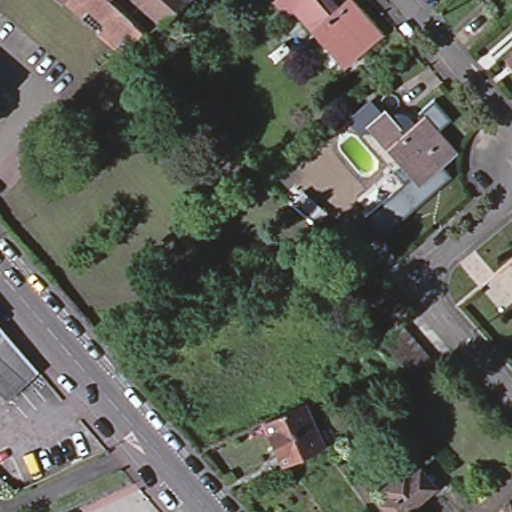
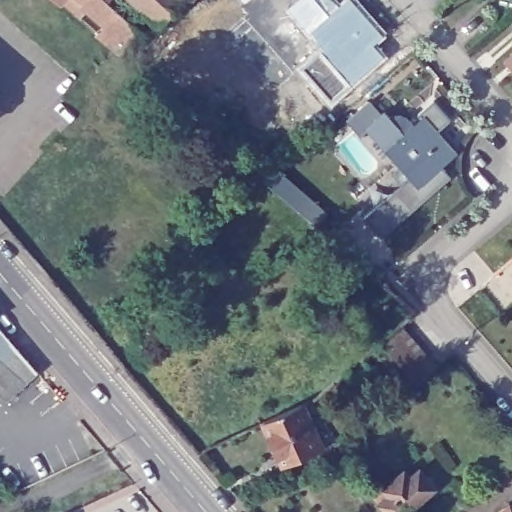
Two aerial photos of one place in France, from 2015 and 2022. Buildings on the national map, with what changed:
unchanged [(83,15),(67,0),(183,0),(161,17),(149,27),(156,36),(131,56),(123,49),(109,37),(100,29),(108,20),(92,5),(89,9),(83,15)]
unchanged [(334,1),(339,7),(347,0),(351,0),(379,33),(365,46),(363,42),(344,59),(329,42),(327,44),(295,7),(286,15),(284,12),(274,0),(333,0),(334,1)]
unchanged [(507,55),(512,50),(512,61),(507,55)]
unchanged [(390,116),(396,112),(401,112),(406,115),(414,123),(423,115),(454,150),(440,163),(438,160),(419,177),(404,159),(401,161),(369,125),(362,131),(349,117),(370,100),(381,112),(384,109),(390,116)]
unchanged [(402,325),(434,363),(416,379),(383,342),(402,325)]
unchanged [(0,326),(7,335),(0,341),(0,326)]
unchanged [(8,397),(0,390),(0,341),(7,335),(37,370),(8,397)]
unchanged [(264,419),(301,401),(323,445),(284,463),(264,421),(264,419)]
unchanged [(397,493),(391,485),(406,471),(414,480),(422,472),(433,483),(409,504),(401,512),(399,512),(389,501),(397,493)]
unchanged [(505,512),(512,505),(512,512),(505,512)]

